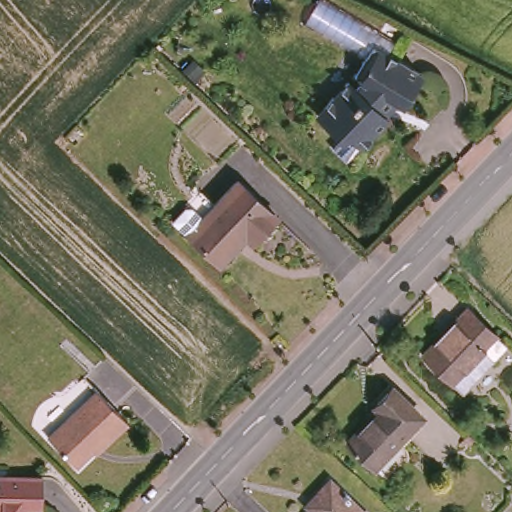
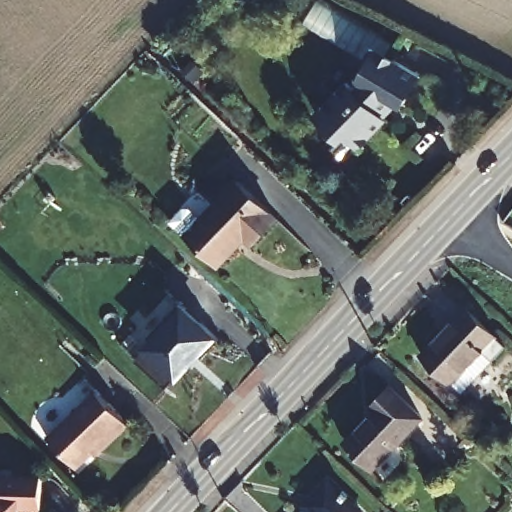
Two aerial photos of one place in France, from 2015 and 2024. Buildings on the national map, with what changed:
unchanged [(363,77),(358,72),(378,45),(423,77),(405,105),(397,99),(381,114),(387,121),(360,149),(345,135),(341,139),(318,115),(350,82),(355,86),(363,77)]
unchanged [(239,187),(280,226),(252,255),(242,247),(222,267),(173,220),(198,195),(215,210),(239,187)]
new [(138,358),(145,347),(182,305),(218,336),(220,340),(205,355),(203,351),(177,378),(167,386),(138,358)]
unchanged [(467,308),(505,345),(492,360),(482,350),(450,383),(422,355),(467,308)]
unchanged [(345,445),(376,413),(372,408),(388,391),(416,420),(368,470),(345,445)]
unchanged [(110,441),(107,437),(72,467),(48,440),(97,396),(127,427),(110,441)]
unchanged [(28,505),(28,512),(0,512),(0,474),(50,475),(49,505),(28,505)]
unchanged [(315,491),(331,475),(367,510),(366,512),(308,512),(321,498),(315,491)]

